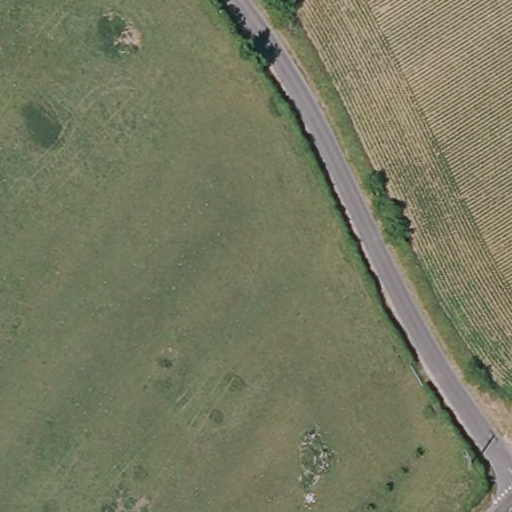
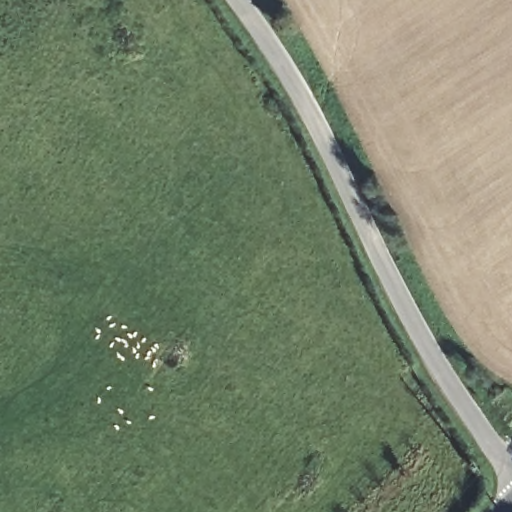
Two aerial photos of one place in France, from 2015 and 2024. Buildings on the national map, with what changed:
[]

